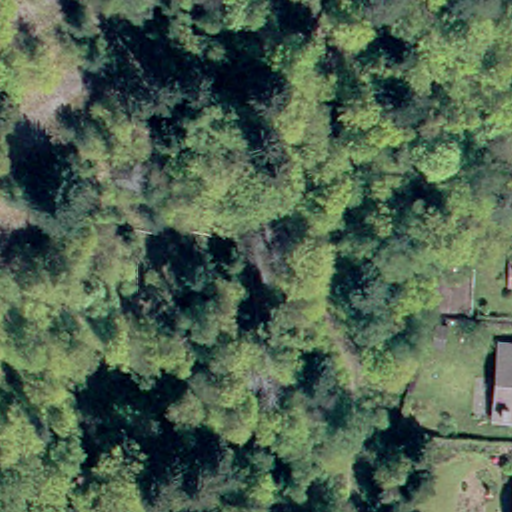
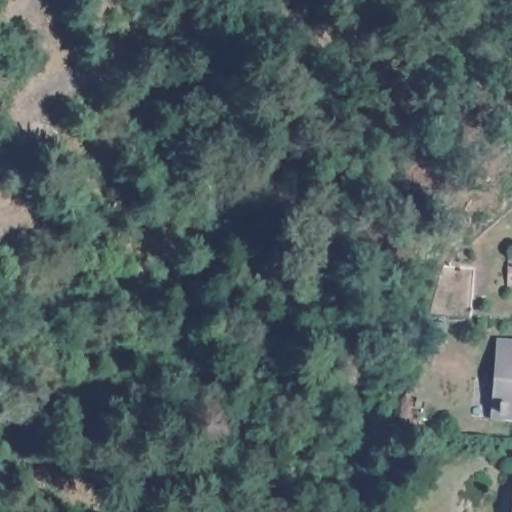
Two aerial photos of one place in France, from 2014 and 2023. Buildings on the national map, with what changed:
unchanged [(505,378),(497,377),(500,333),(512,334),(512,408),(503,407),(505,378)]

